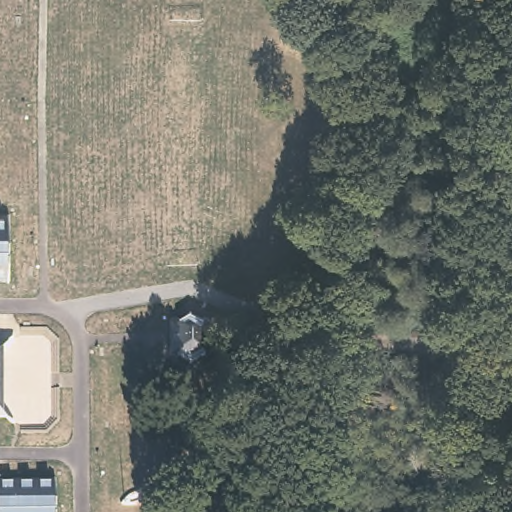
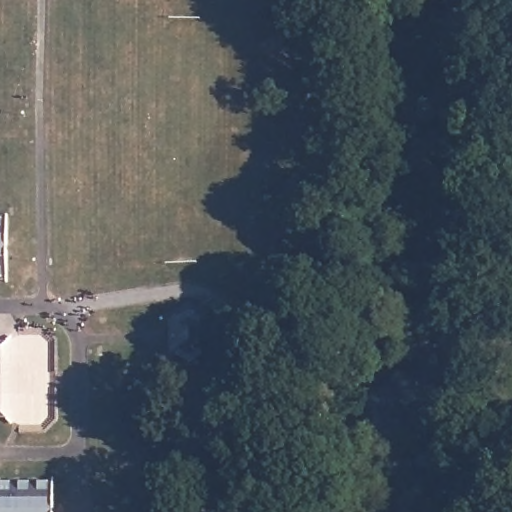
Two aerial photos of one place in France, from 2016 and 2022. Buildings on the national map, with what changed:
unchanged [(8,277),(0,277),(0,217),(8,217),(8,243),(8,254),(8,277)]
unchanged [(210,322),(211,347),(191,360),(171,349),(170,322),(190,311),(210,322)]
unchanged [(54,480),(54,507),(54,512),(0,512),(0,480),(54,480)]

